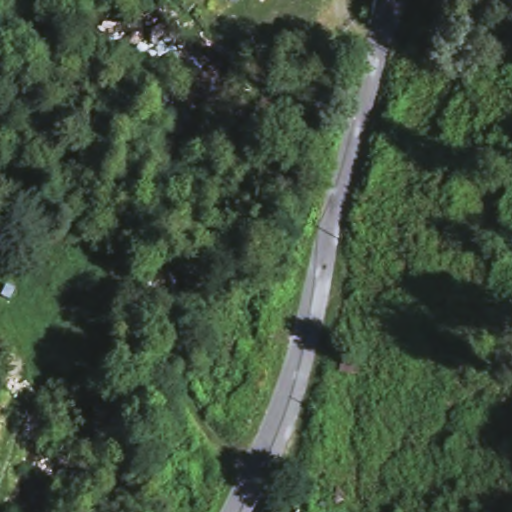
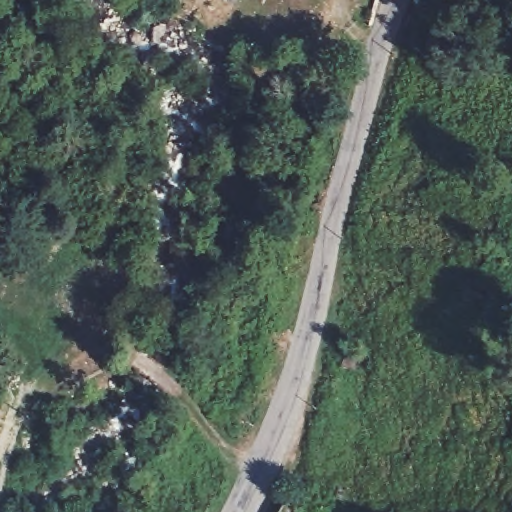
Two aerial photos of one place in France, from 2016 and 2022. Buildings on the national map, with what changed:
unchanged [(303,506),(300,512),(277,512),(288,497),(303,506)]

